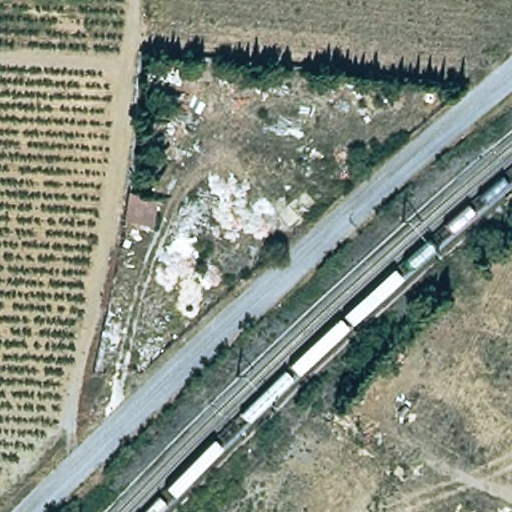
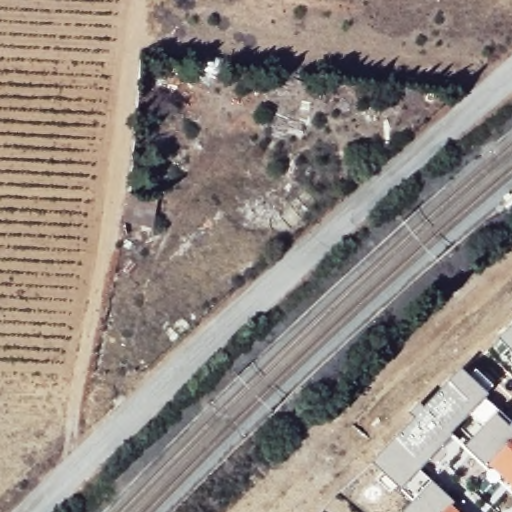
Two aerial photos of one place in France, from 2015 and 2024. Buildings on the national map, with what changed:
unchanged [(154,227),(120,226),(125,189),(159,190),(154,227)]
new [(502,356),(509,349),(499,338),(512,327),(512,367),(502,356)]
demolished [(338,419),(384,352),(406,366),(364,436),(338,419)]
new [(488,466),(484,469),(464,448),(481,429),(467,415),(449,433),(452,436),(420,471),(431,482),(454,503),(452,506),(458,512),(402,512),(412,501),(399,490),(395,486),(388,493),(376,480),(383,474),(373,465),(416,420),(410,414),(421,403),(425,408),(462,369),(469,375),(474,370),(492,388),(487,395),(484,398),(498,411),(494,415),(508,428),(512,424),(512,489),(488,466)]

